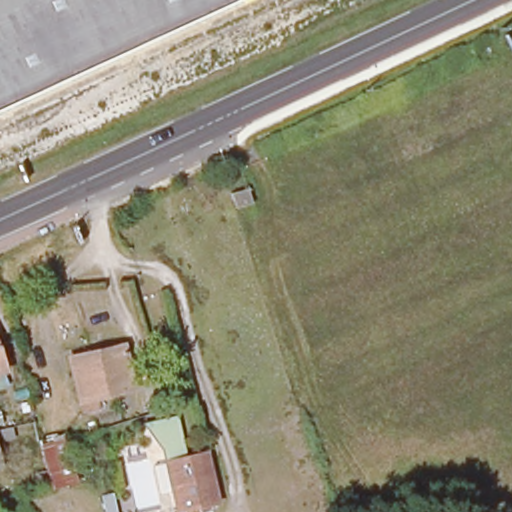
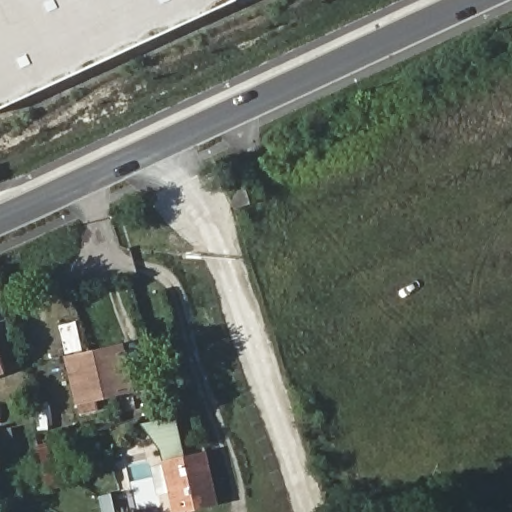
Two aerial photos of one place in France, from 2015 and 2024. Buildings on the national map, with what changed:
unchanged [(0,0),(238,0),(0,110),(0,0)]
unchanged [(254,186),(259,209),(238,214),(233,191),(254,186)]
unchanged [(71,358),(122,346),(134,391),(83,403),(71,358)]
unchanged [(0,372),(0,359),(4,371),(0,372)]
unchanged [(14,408),(29,403),(31,413),(16,417),(14,408)]
unchanged [(74,482),(49,488),(35,436),(59,429),(74,482)]
unchanged [(181,512),(177,512),(165,463),(205,453),(217,503),(181,512)]
unchanged [(0,470),(0,463),(2,469),(0,470)]

